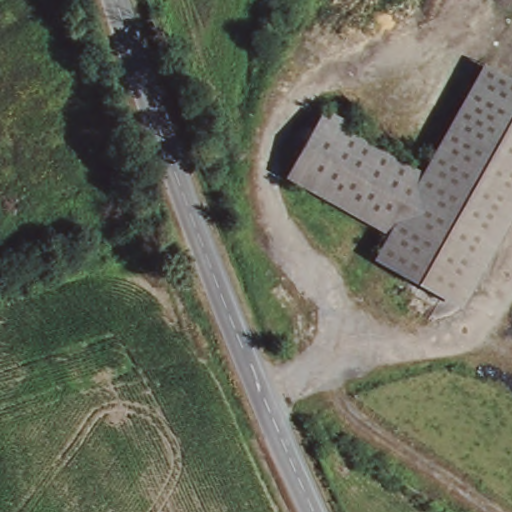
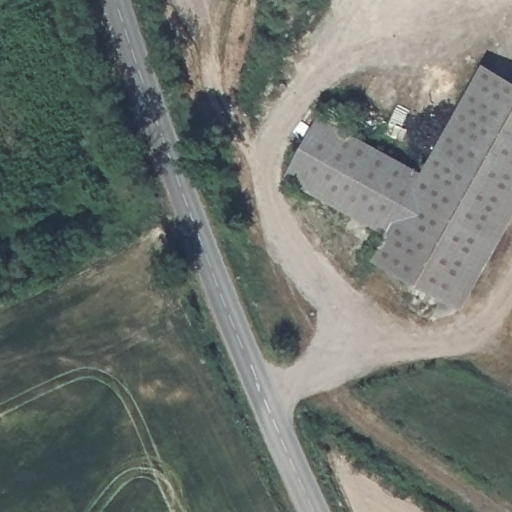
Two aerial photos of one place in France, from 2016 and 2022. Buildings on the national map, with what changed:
unchanged [(453,306),(372,263),(385,238),(283,181),(320,114),(328,120),(331,115),(355,125),(350,132),(421,172),(486,53),(512,68),(512,195),(453,306)]

